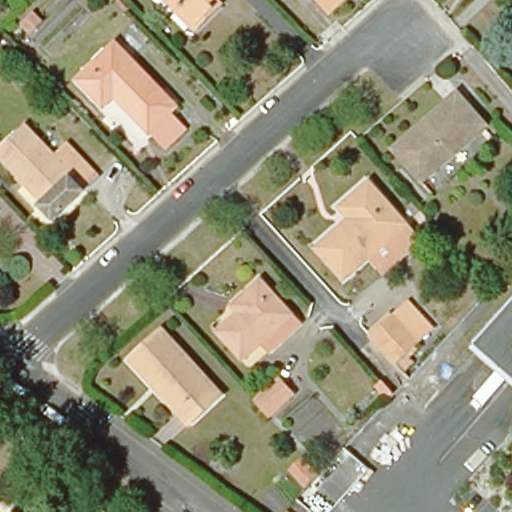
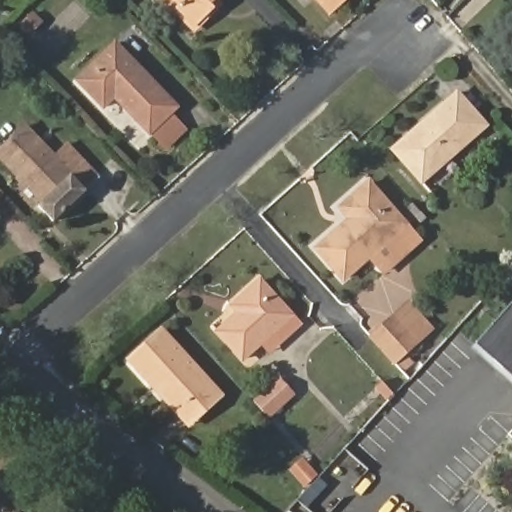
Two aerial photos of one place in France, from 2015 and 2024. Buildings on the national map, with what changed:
unchanged [(175,18),(171,22),(156,5),(160,2),(162,0),(223,0),(215,7),(219,10),(215,15),(195,33),(192,36),(175,18)]
unchanged [(327,6),(321,0),(334,0),(327,6)]
unchanged [(165,147),(150,131),(116,94),(104,105),(79,77),(117,41),(177,106),(170,113),(185,129),(165,147)]
unchanged [(388,143),(452,88),(479,119),(416,174),(388,143)]
unchanged [(81,188),(48,219),(34,203),(39,198),(0,156),(0,143),(22,123),(50,154),(65,140),(93,170),(97,173),(81,188)]
unchanged [(362,249),(337,271),(311,240),(346,209),(337,199),(364,176),(399,217),(362,249)]
unchanged [(413,234),(376,266),(362,249),(399,217),(413,234)]
unchanged [(259,342),(242,358),(216,330),(237,309),(232,304),(259,279),(300,324),(286,337),(269,353),(259,342)]
unchanged [(512,306),(512,381),(475,349),(512,306)]
unchanged [(395,313),(419,340),(395,362),(371,335),(395,313)]
unchanged [(154,386),(128,359),(151,337),(160,330),(220,395),(193,420),(188,424),(154,386)]
unchanged [(260,402),(284,381),(297,395),(274,417),(260,402)]
unchanged [(503,498),(502,488),(504,476),(506,464),(509,454),(512,446),(512,510),(508,506),(503,498)]
unchanged [(326,470),(310,485),(293,468),(308,452),(326,470)]
unchanged [(111,512),(83,512),(97,499),(111,512)]

